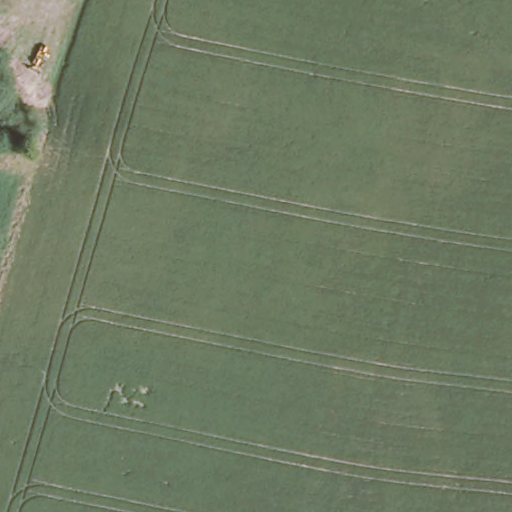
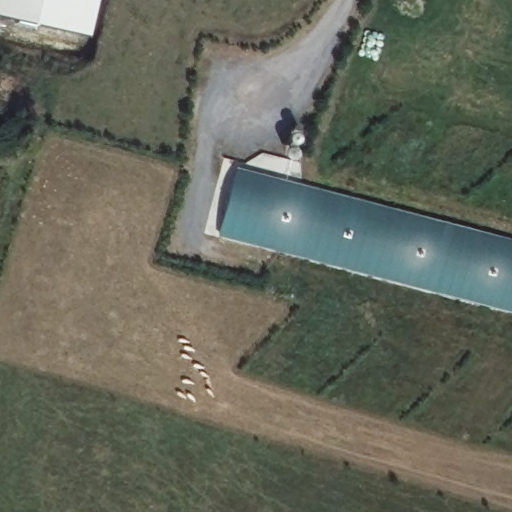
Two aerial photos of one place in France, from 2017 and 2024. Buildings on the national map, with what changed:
new [(92,35),(0,15),(0,0),(100,0),(92,35)]
new [(237,168),(512,240),(512,312),(220,235),(237,168)]

